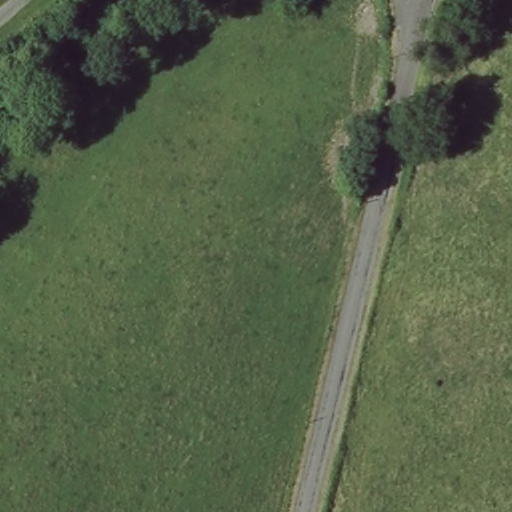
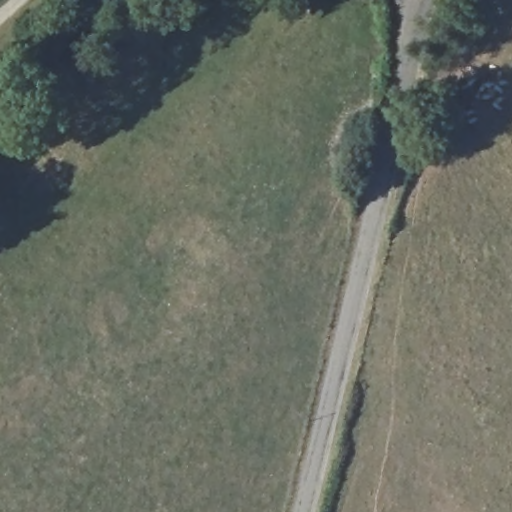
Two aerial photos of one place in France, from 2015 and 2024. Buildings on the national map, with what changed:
[]

